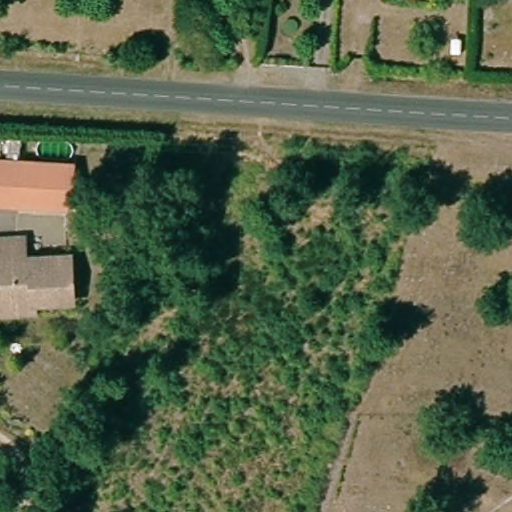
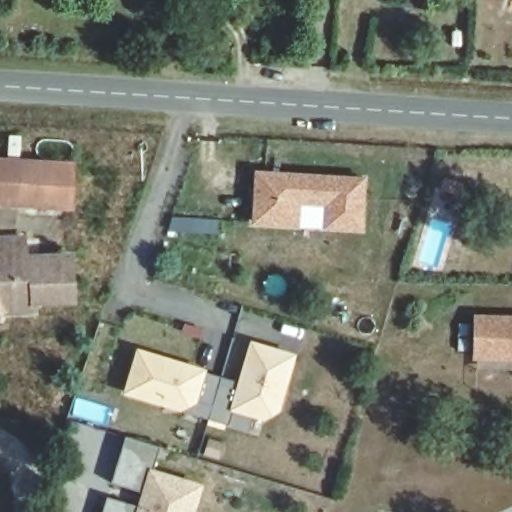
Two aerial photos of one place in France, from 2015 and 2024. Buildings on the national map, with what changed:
unchanged [(0,204),(0,163),(17,164),(15,205),(0,204)]
unchanged [(71,167),(68,208),(15,205),(17,164),(71,167)]
new [(252,224),(253,169),(367,175),(363,231),(324,229),(325,205),(301,204),(300,226),(252,224)]
unchanged [(0,235),(22,233),(22,254),(69,252),(71,297),(31,299),(32,308),(0,310),(0,235)]
new [(474,312),(512,313),(512,361),(473,360),(474,312)]
new [(205,374),(237,383),(250,341),(296,355),(280,413),(265,421),(252,417),(247,431),(124,393),(137,349),(207,369),(205,374)]
new [(204,483),(196,512),(104,512),(109,496),(136,504),(141,490),(112,481),(127,435),(159,446),(153,467),(204,483)]

